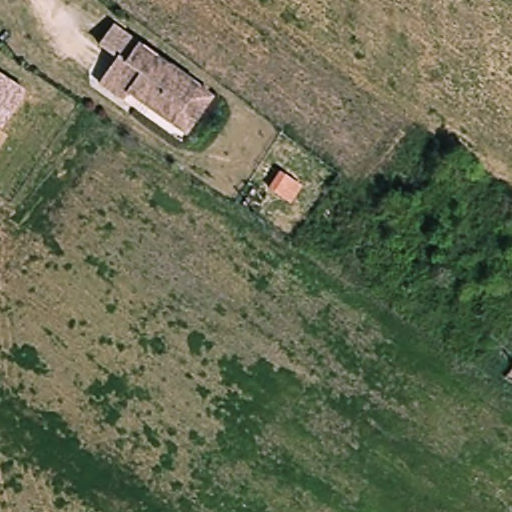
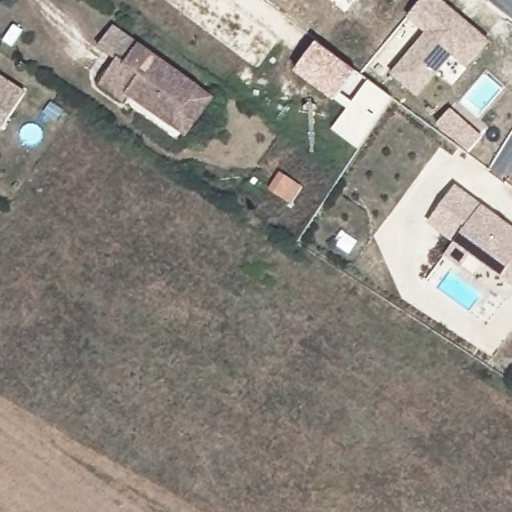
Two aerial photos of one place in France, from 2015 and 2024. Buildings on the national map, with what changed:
new [(407,16),(421,0),(442,0),(489,41),(467,68),(453,56),(418,96),(390,73),(425,32),(407,16)]
new [(341,94),(353,102),(369,80),(392,97),(359,149),(333,130),(348,110),(334,101),(295,71),(318,42),(357,71),(341,94)]
unchanged [(188,140),(176,131),(130,101),(126,106),(101,91),(119,62),(128,67),(138,53),(200,95),(213,103),(188,140)]
unchanged [(0,129),(0,74),(27,91),(3,131),(0,129)]
unchanged [(287,211),(266,193),(279,170),(301,185),(287,211)]
new [(455,185),(481,204),(512,227),(512,286),(502,277),(471,254),(461,268),(444,256),(454,243),(427,223),(455,185)]

